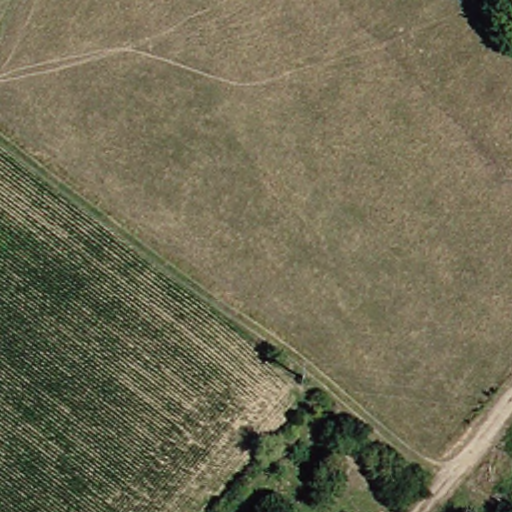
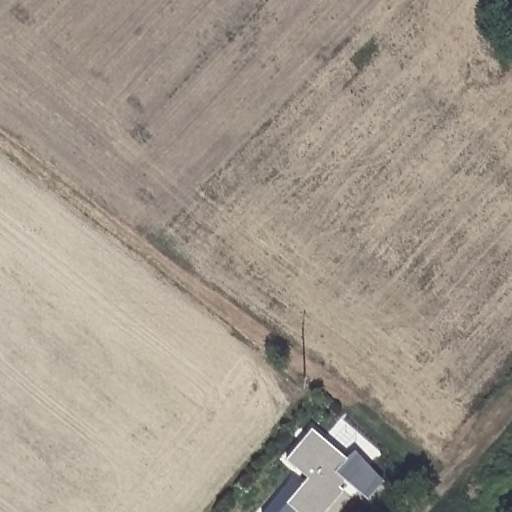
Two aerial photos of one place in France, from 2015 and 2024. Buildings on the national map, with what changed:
new [(348,457),(353,452),(386,481),(371,499),(348,480),(343,486),(347,490),(328,512),(302,512),(290,502),(311,478),(288,458),(314,428),(348,457)]

